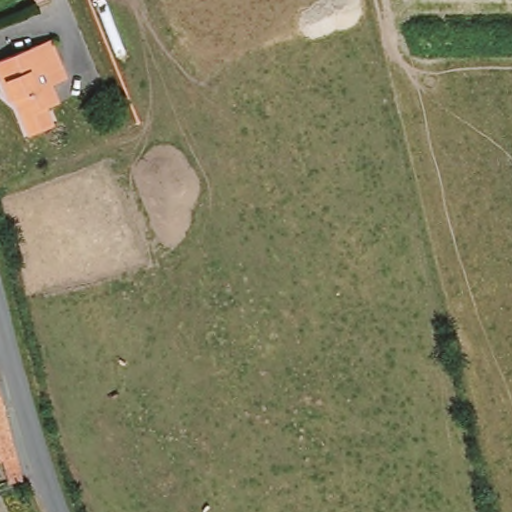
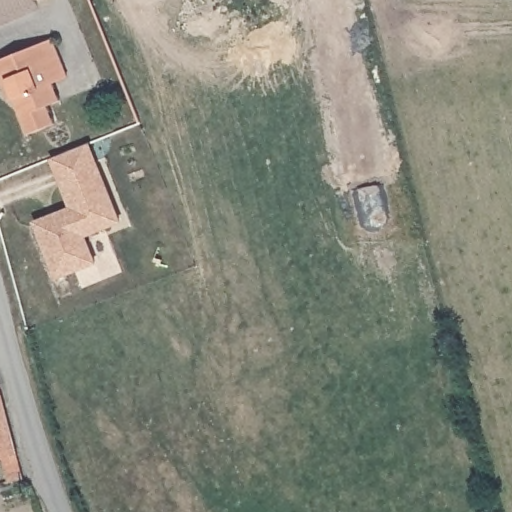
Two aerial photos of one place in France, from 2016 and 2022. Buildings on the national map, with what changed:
unchanged [(31,0),(38,0),(32,2),(31,0)]
unchanged [(0,75),(0,59),(52,37),(63,64),(67,76),(52,82),(59,100),(47,105),(54,123),(28,132),(15,98),(10,100),(2,81),(0,75)]
new [(70,207),(50,157),(87,142),(118,220),(83,235),(94,261),(57,276),(37,229),(34,221),(55,213),(70,207)]
unchanged [(10,481),(7,458),(2,458),(0,450),(0,451),(0,386),(23,480),(10,481)]

